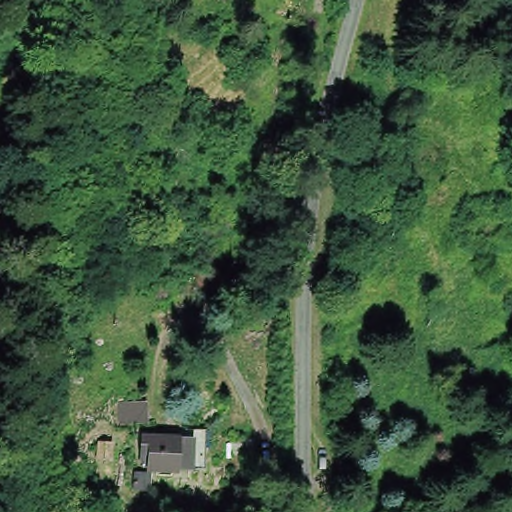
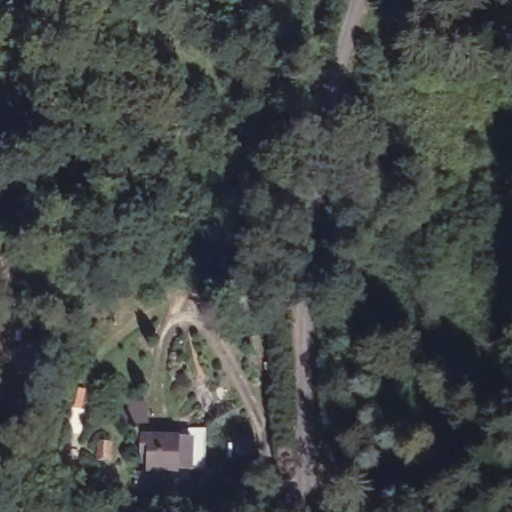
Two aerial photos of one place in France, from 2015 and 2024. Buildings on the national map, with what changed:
unchanged [(186,438),(198,439),(197,461),(182,460),(181,468),(181,471),(154,469),(154,460),(147,459),(148,437),(186,438)]
unchanged [(255,454),(227,455),(227,439),(255,439),(255,454)]
unchanged [(97,459),(99,441),(110,443),(107,460),(97,459)]
unchanged [(154,490),(139,489),(141,473),(155,474),(154,490)]

